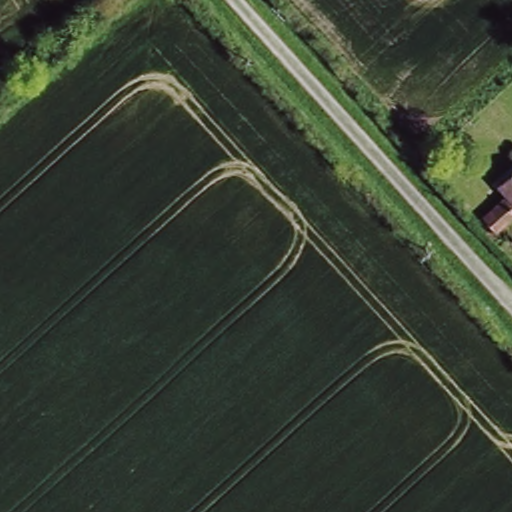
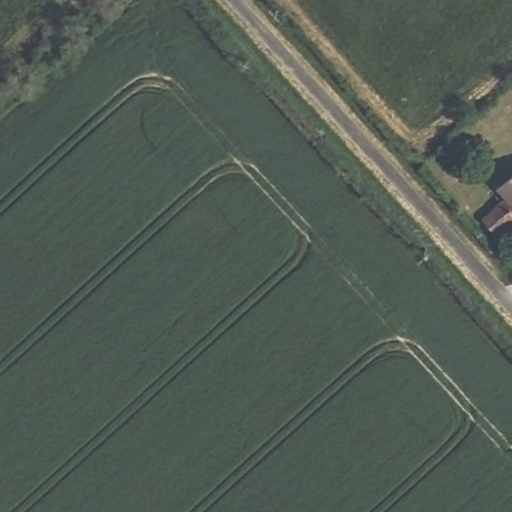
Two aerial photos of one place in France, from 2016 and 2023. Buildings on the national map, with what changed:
unchanged [(497,230),(484,216),(505,196),(494,183),(512,168),(512,215),(497,230)]

